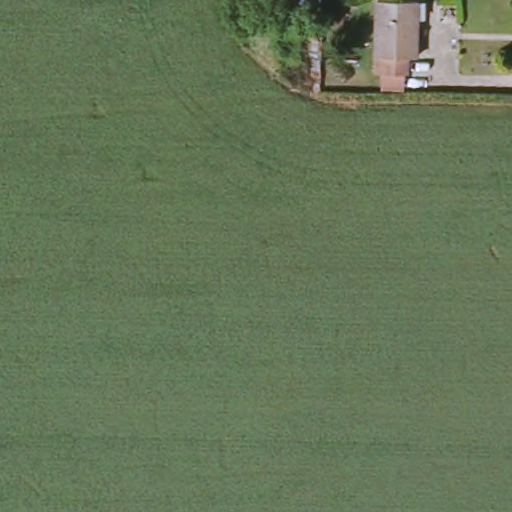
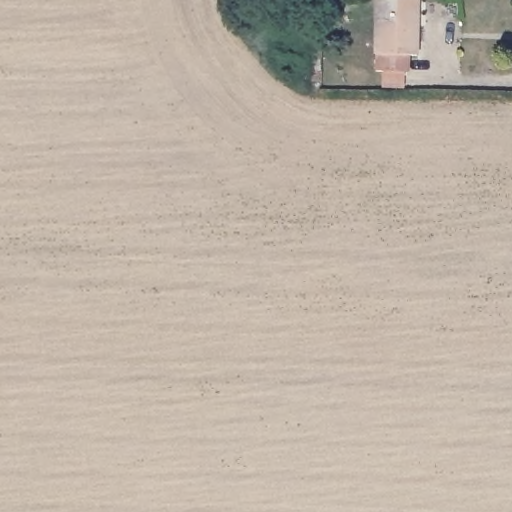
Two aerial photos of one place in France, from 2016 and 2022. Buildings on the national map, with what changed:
unchanged [(400,57),(400,72),(368,72),(368,0),(411,0),(411,24),(411,57),(400,57)]

